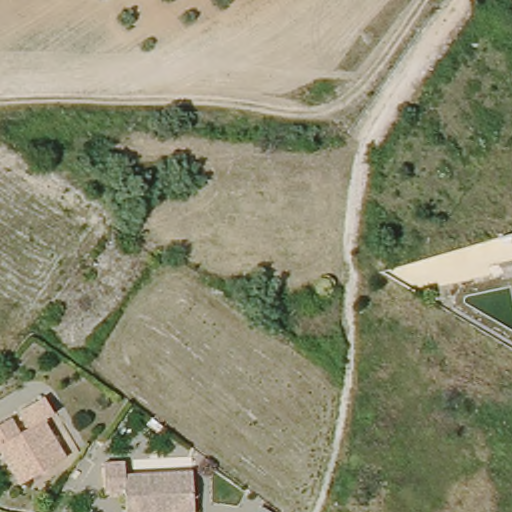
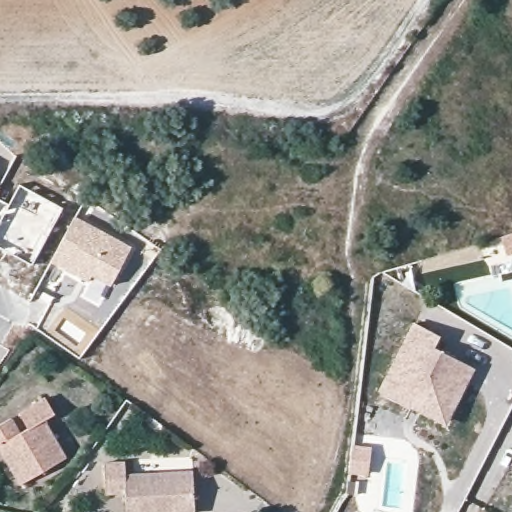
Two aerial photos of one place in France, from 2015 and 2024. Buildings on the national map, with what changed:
new [(64,207),(32,264),(0,247),(0,218),(19,183),(64,207)]
new [(75,216),(132,246),(109,288),(90,279),(87,283),(50,262),(75,216)]
new [(413,322),(440,336),(435,347),(475,368),(446,425),(377,390),(413,322)]
unchanged [(24,426),(16,412),(41,397),(51,413),(40,420),(61,457),(15,482),(0,456),(0,420),(4,418),(12,432),(24,426)]
unchanged [(124,496),(103,497),(98,461),(124,460),(125,472),(191,470),(195,512),(126,512),(124,496)]

